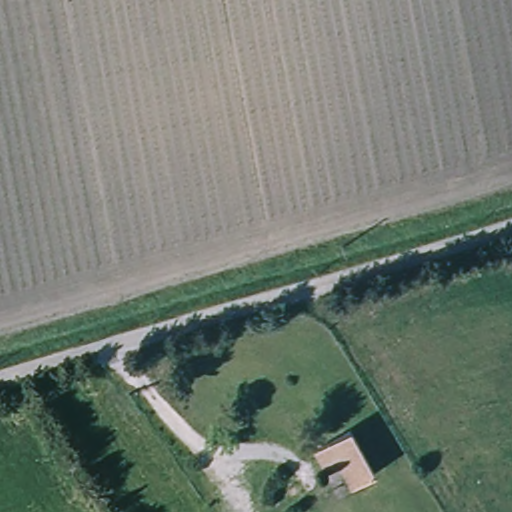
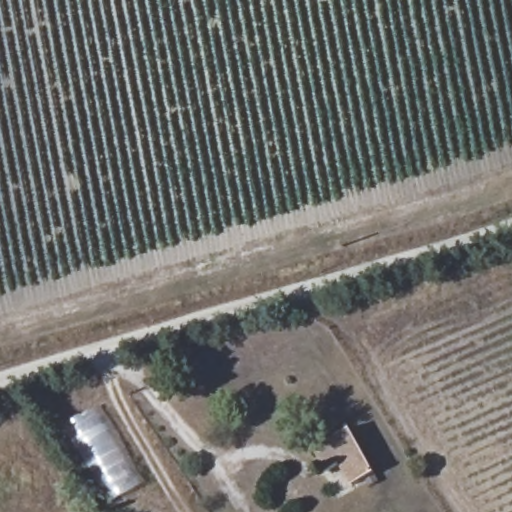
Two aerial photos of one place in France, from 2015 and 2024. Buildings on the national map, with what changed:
new [(101,406),(145,483),(110,501),(66,426),(101,406)]
unchanged [(368,476),(349,486),(337,465),(320,474),(308,453),(343,433),(368,476)]

